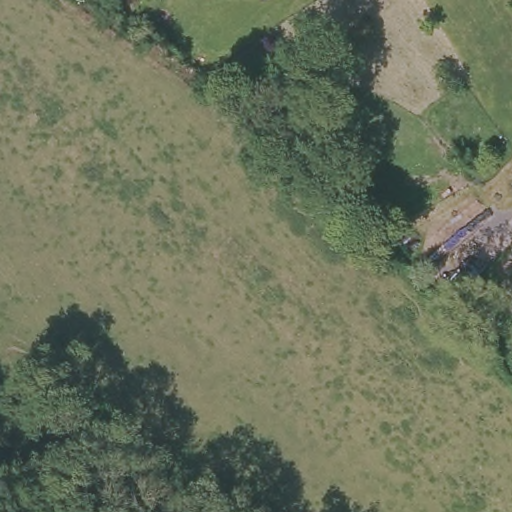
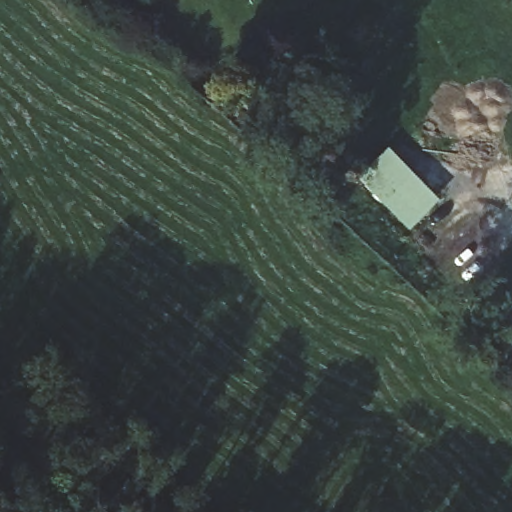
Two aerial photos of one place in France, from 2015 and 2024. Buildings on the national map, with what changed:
new [(439,199),(409,229),(359,179),(390,149),(439,199)]

